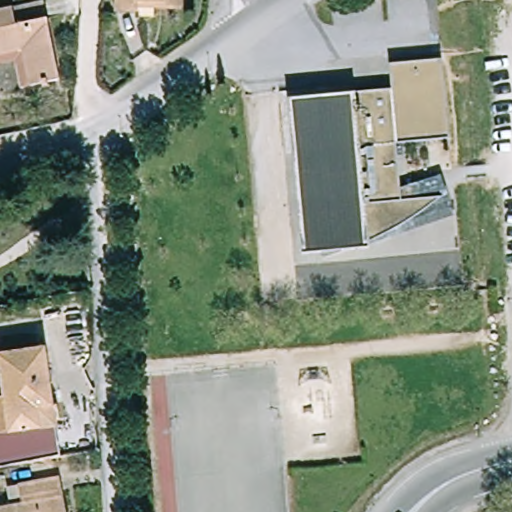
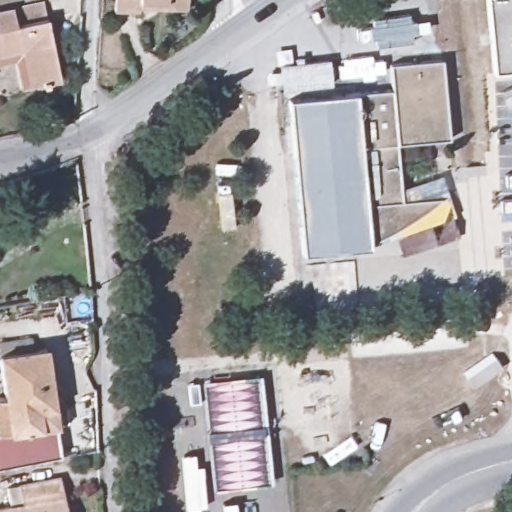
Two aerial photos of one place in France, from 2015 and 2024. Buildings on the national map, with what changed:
unchanged [(183,5),(136,4),(136,8),(111,7),(111,0),(183,0),(183,5)]
new [(494,73),(487,0),(512,0),(512,71),(494,73)]
unchanged [(24,89),(17,61),(0,65),(0,14),(44,4),(61,80),(24,89)]
unchanged [(389,64),(441,60),(448,139),(395,144),(391,89),(389,64)]
unchanged [(369,247),(349,249),(323,258),(323,251),(301,253),(287,98),(391,89),(395,144),(399,190),(437,176),(445,195),(452,215),(369,247)]
unchanged [(15,341),(16,352),(46,348),(63,457),(15,466),(0,468),(0,398),(7,397),(0,350),(0,343),(15,341)]
unchanged [(14,507),(10,488),(62,478),(68,512),(0,512),(0,509),(14,507)]

